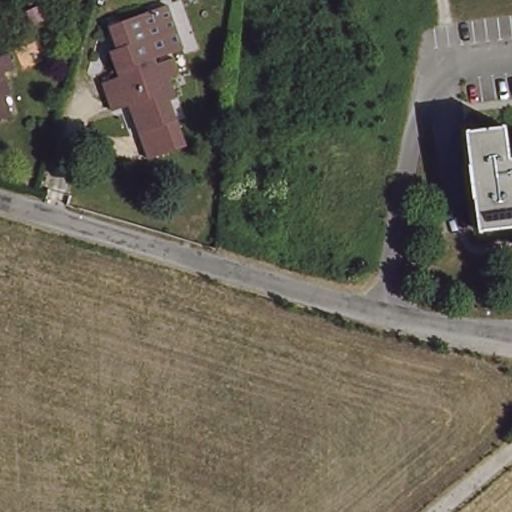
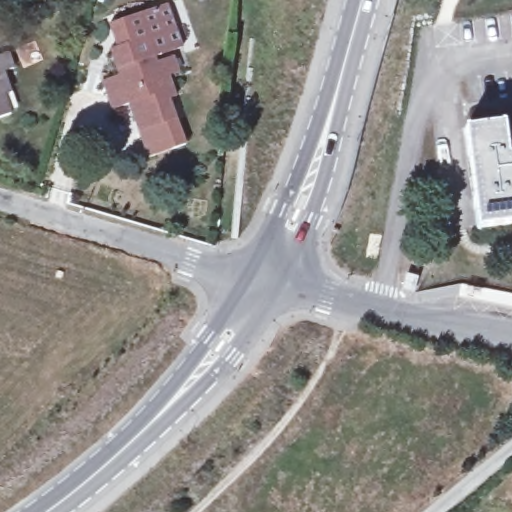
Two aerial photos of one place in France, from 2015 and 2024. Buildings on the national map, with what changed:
unchanged [(127,103),(110,107),(101,79),(117,72),(108,44),(115,39),(109,20),(169,0),(172,0),(185,41),(152,54),(155,59),(170,54),(175,70),(167,74),(172,94),(167,96),(174,117),(185,143),(167,149),(143,155),(135,129),(127,103)]
unchanged [(6,58),(11,71),(2,74),(10,94),(1,98),(5,108),(7,107),(10,115),(0,119),(0,60),(6,58)]
unchanged [(512,157),(512,226),(477,230),(464,130),(502,126),(507,158),(512,157)]

